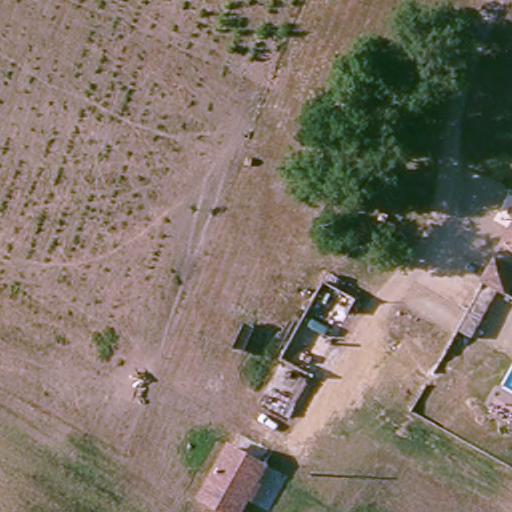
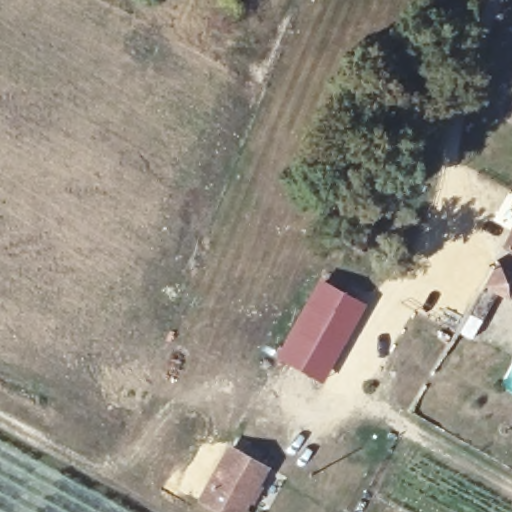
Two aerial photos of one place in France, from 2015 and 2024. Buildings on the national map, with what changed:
unchanged [(512,234),(512,243),(507,241),(512,234)]
new [(482,283),(496,259),(512,269),(512,287),(506,298),(497,292),(470,339),(456,330),(482,283)]
new [(319,278),(365,304),(322,383),(275,356),(319,278)]
unchanged [(245,512),(201,512),(196,510),(233,442),(272,463),(245,512)]

